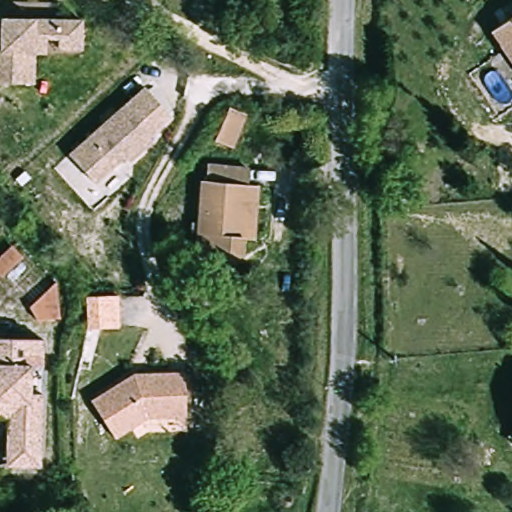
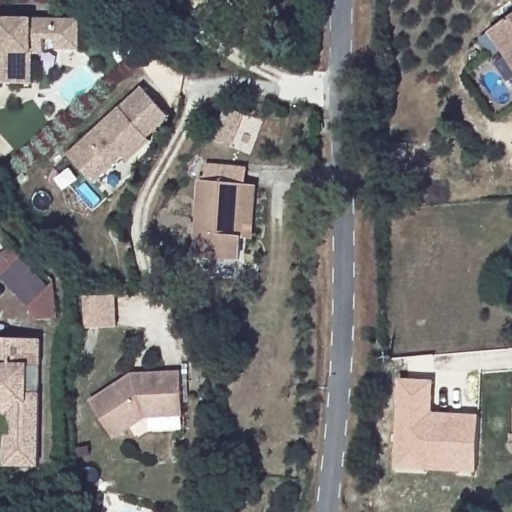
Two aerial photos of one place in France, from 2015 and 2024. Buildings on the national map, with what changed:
unchanged [(30,52),(34,83),(0,88),(0,24),(70,13),(74,40),(53,43),(52,34),(38,36),(40,50),(30,52)]
unchanged [(490,28),(512,14),(512,67),(501,49),(490,28)]
unchanged [(67,153),(143,86),(171,116),(148,137),(153,142),(130,163),(124,158),(94,184),(67,153)]
unchanged [(244,107),(238,147),(216,145),(221,107),(244,107)]
unchanged [(196,258),(196,183),(203,183),(204,163),(248,163),(248,178),(260,178),(263,228),(248,228),(248,258),(196,258)]
unchanged [(26,255),(60,284),(62,319),(55,330),(3,279),(26,255)]
new [(107,287),(120,286),(138,291),(131,322),(100,314),(107,287)]
unchanged [(12,413),(0,415),(0,342),(30,338),(33,361),(23,363),(27,390),(39,388),(51,457),(31,461),(22,462),(12,413)]
unchanged [(164,418),(142,418),(110,436),(87,397),(133,374),(182,374),(183,408),(183,417),(164,418)]
new [(479,415),(476,472),(394,466),(399,378),(435,380),(433,411),(479,415)]

